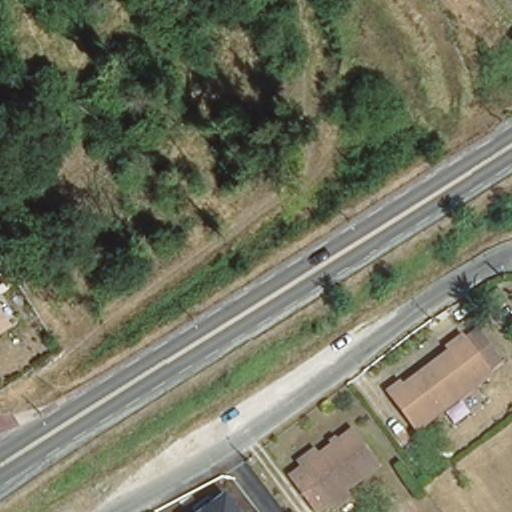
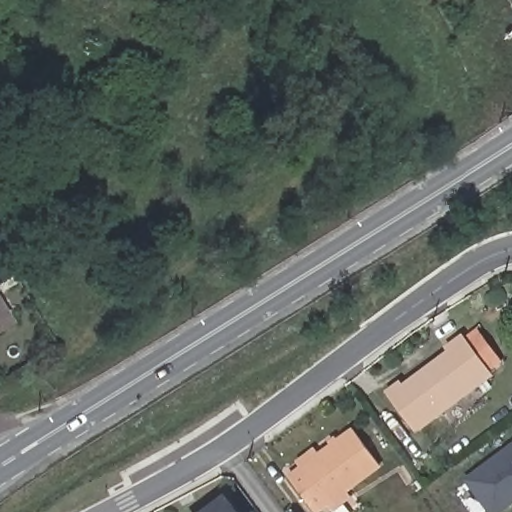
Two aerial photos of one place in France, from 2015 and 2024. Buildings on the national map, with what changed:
unchanged [(0,330),(0,301),(14,322),(0,330)]
unchanged [(448,347),(446,344),(461,332),(489,371),(415,426),(387,387),(401,377),(403,381),(448,347)]
unchanged [(330,494),(315,505),(288,469),(303,458),(297,451),(311,441),(317,448),(332,437),(326,430),(333,426),(338,432),(353,421),(380,457),(343,484),(348,490),(335,500),(330,494)]
new [(457,484),(512,443),(512,498),(511,499),(493,512),(478,512),(457,484)]
unchanged [(225,494),(239,512),(199,512),(225,494)]

